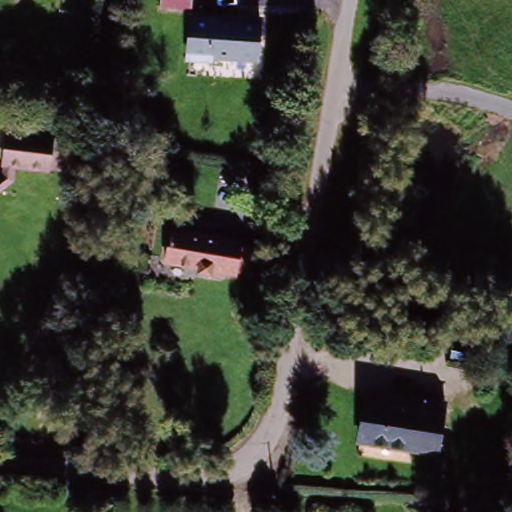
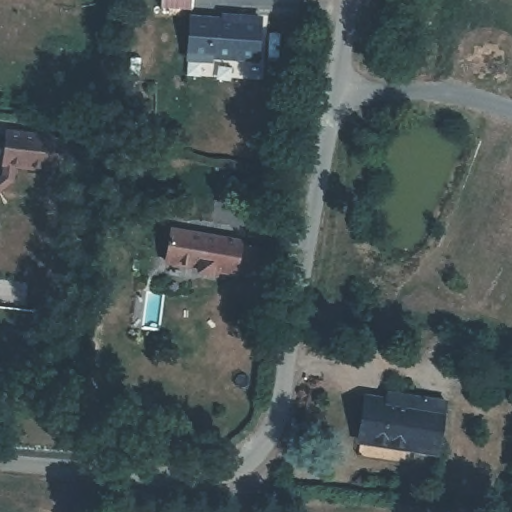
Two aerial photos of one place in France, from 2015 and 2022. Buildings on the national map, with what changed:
unchanged [(193,5),(264,11),(260,57),(188,55),(193,5)]
unchanged [(3,169),(5,160),(2,160),(7,126),(52,131),(52,133),(71,136),(68,167),(48,164),(48,166),(14,162),(12,175),(0,185),(0,172),(3,169)]
unchanged [(252,275),(234,271),(232,276),(215,273),(215,277),(195,274),(196,269),(166,263),(172,231),(239,244),(238,249),(257,253),(252,275)]
unchanged [(355,441),(363,393),(386,397),(387,390),(444,400),(436,455),(355,441)]

